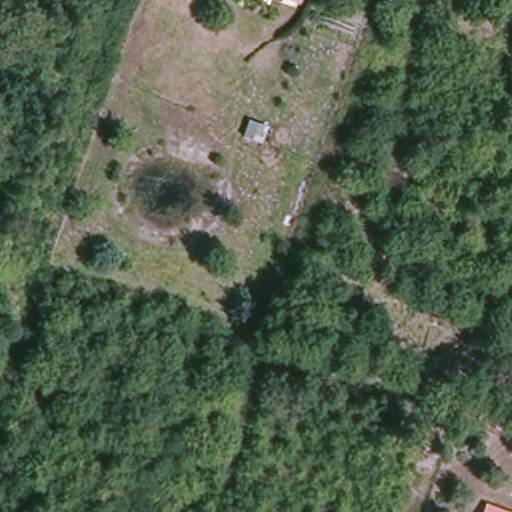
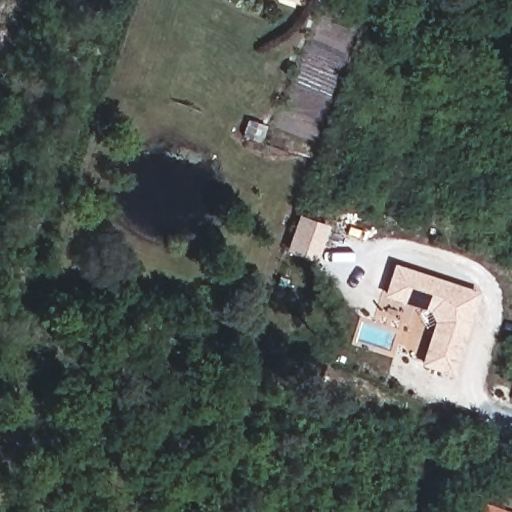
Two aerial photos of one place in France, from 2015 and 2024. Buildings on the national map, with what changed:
new [(422,366),(435,321),(432,311),(387,297),(397,263),(482,291),(455,374),(422,366)]
unchanged [(512,512),(485,512),(488,503),(512,512)]

